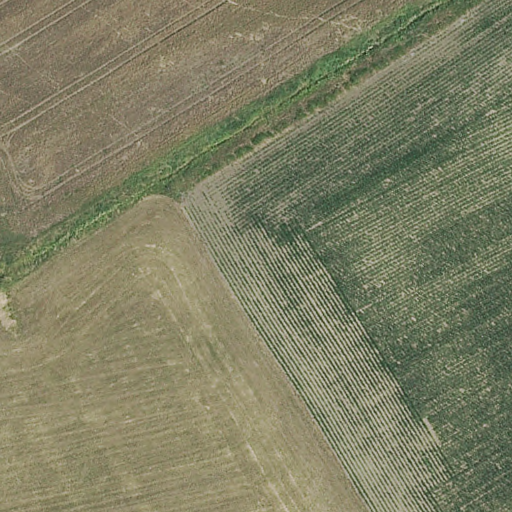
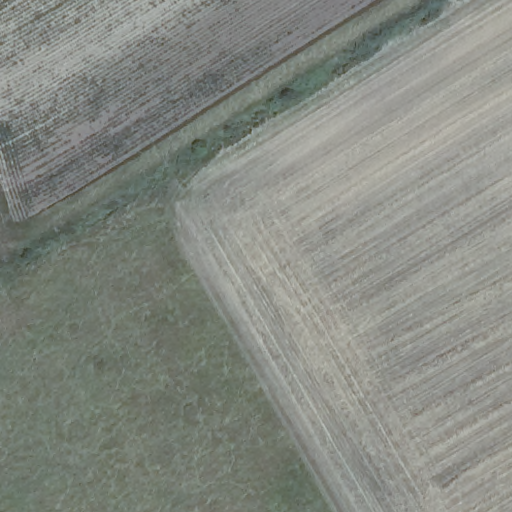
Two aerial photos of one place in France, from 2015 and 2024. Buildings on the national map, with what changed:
[]

